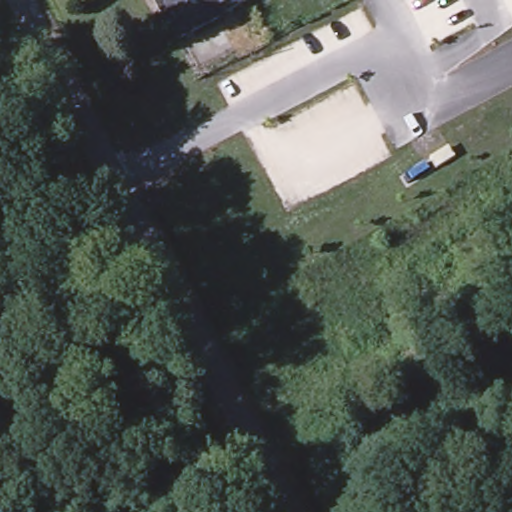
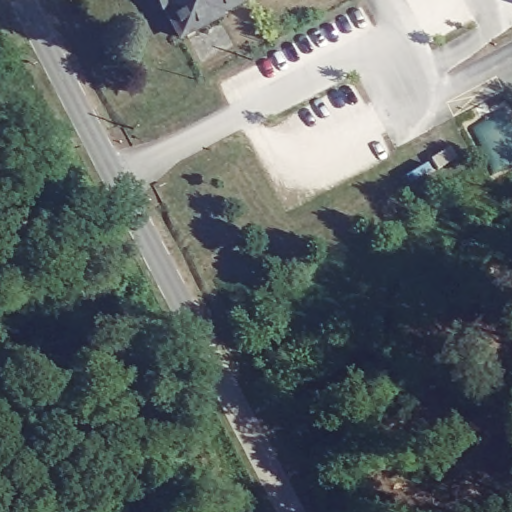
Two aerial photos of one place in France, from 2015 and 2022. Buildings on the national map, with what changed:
unchanged [(163,5),(162,5),(158,0),(238,0),(179,32),(163,5)]
unchanged [(441,165),(447,177),(429,187),(422,176),(441,165)]

